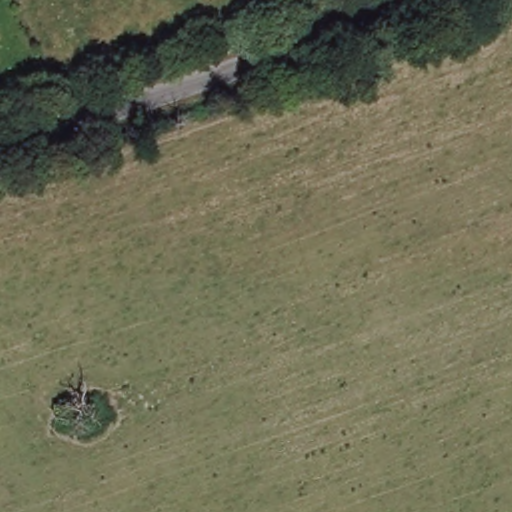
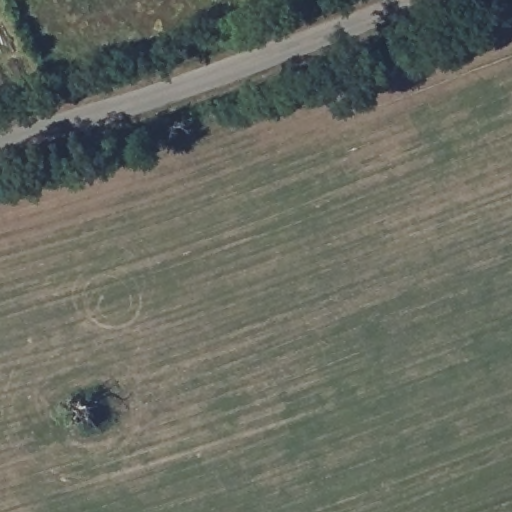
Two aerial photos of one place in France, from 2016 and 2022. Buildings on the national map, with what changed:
[]

